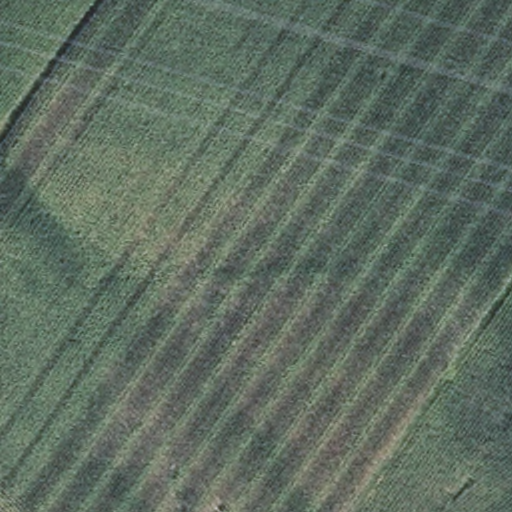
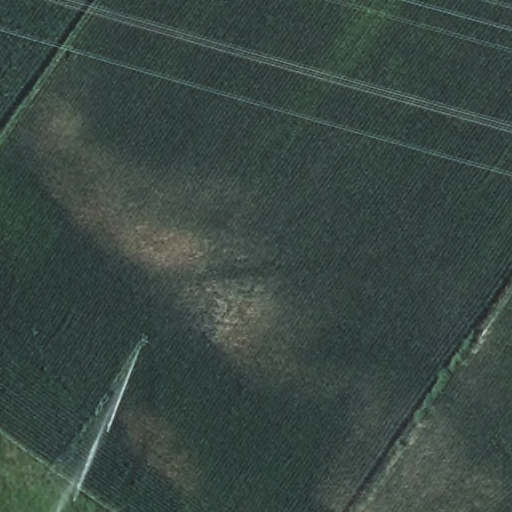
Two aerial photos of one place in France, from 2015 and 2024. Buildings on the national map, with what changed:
[]

